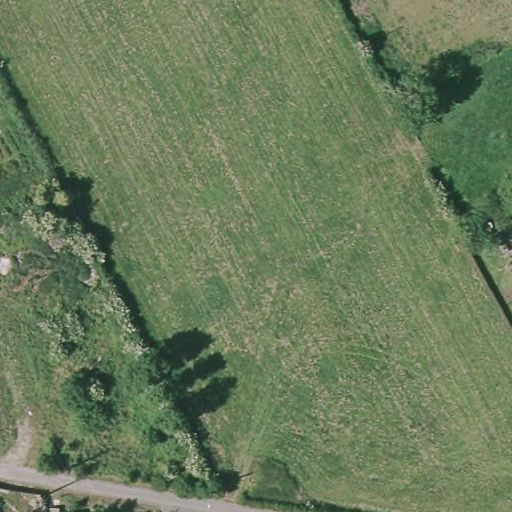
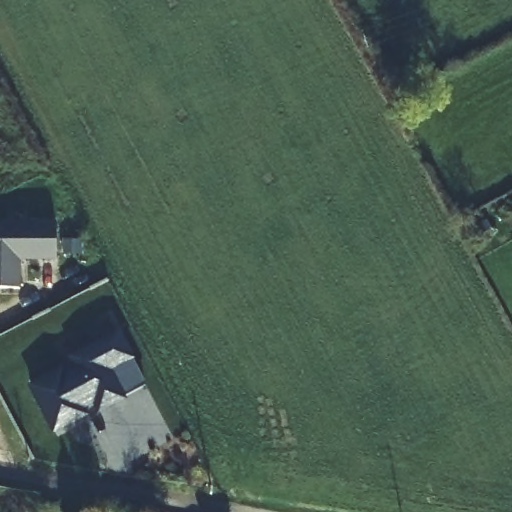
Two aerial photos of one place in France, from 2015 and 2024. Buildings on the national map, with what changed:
new [(58,259),(21,259),(20,288),(0,288),(0,223),(60,224),(58,259)]
new [(60,372),(63,379),(77,371),(71,360),(117,335),(144,387),(97,412),(92,402),(80,409),(82,416),(52,432),(30,388),(60,372)]

